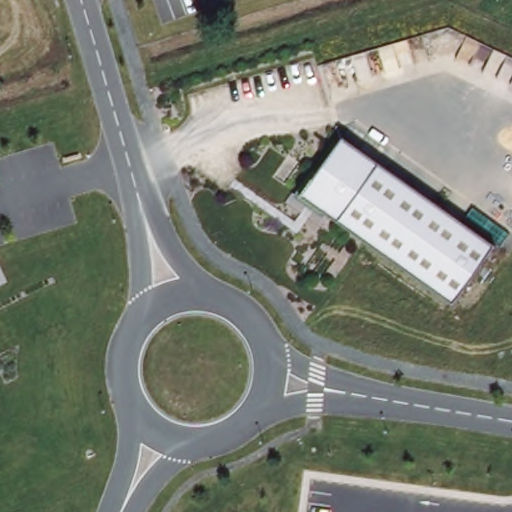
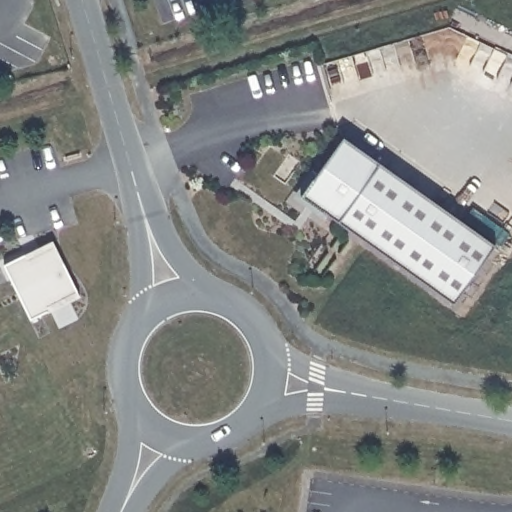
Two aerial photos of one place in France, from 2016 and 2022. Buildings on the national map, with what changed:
unchanged [(345,135),(499,245),(456,306),(305,196),(345,135)]
new [(50,311),(50,310),(30,319),(4,265),(25,254),(53,241),(63,262),(63,263),(78,292),(80,296),(50,311)]

